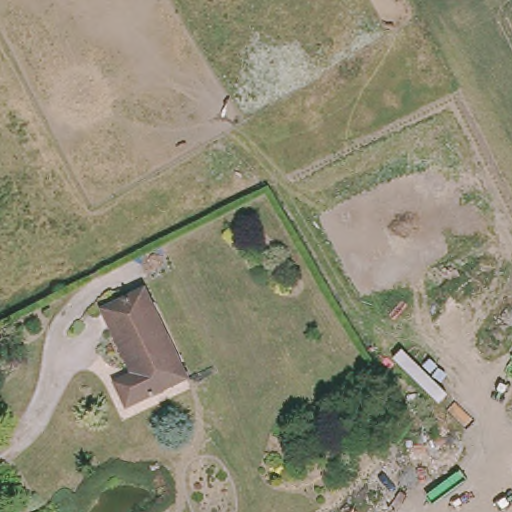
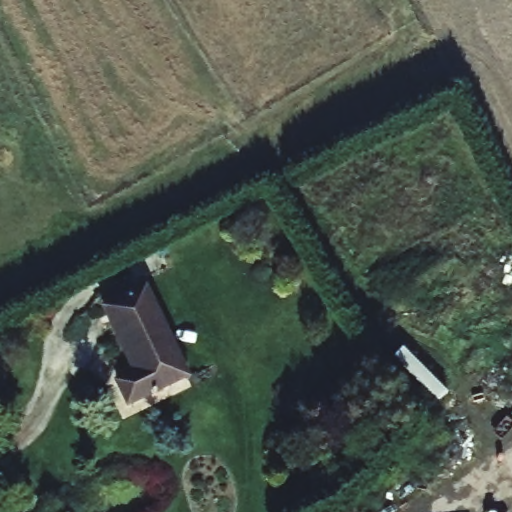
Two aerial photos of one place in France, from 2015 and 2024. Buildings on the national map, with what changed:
unchanged [(132,409),(120,387),(137,378),(105,313),(145,291),(190,381),(132,409)]

